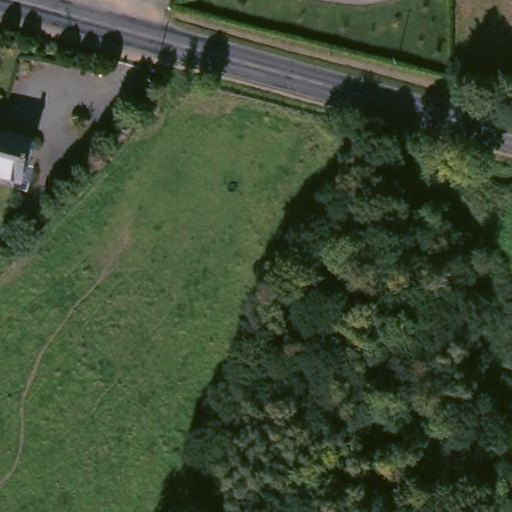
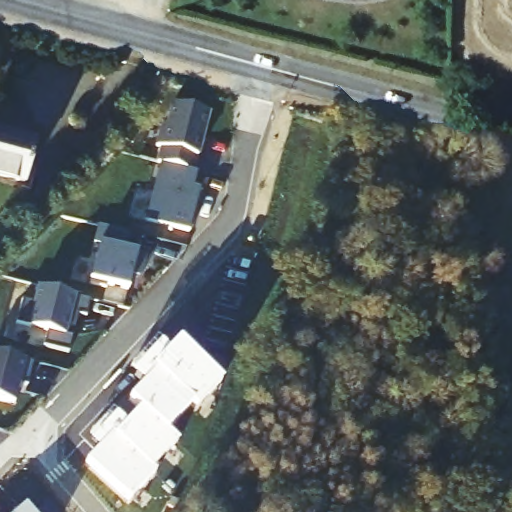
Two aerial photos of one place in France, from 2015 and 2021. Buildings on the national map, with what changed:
new [(162,127),(167,128),(172,106),(208,116),(196,159),(191,173),(157,164),(161,150),(157,149),(162,127)]
unchanged [(0,171),(0,123),(45,135),(32,179),(0,171)]
new [(200,189),(189,232),(145,221),(157,179),(200,189)]
new [(100,243),(94,242),(99,226),(131,234),(125,251),(137,254),(145,255),(140,278),(131,275),(127,290),(91,280),(100,243)]
new [(76,297),(90,301),(85,316),(76,315),(68,351),(45,346),(46,332),(27,326),(16,324),(22,300),(34,303),(37,286),(76,297)]
new [(109,421),(105,417),(110,411),(117,418),(125,425),(139,411),(129,401),(141,387),(132,378),(137,372),(131,366),(137,360),(142,365),(157,348),(159,350),(165,356),(176,345),(219,385),(193,411),(189,407),(164,434),(175,444),(149,471),(153,475),(127,501),(86,462),(99,448),(93,443),(96,440),(94,438),(109,421)]
new [(27,387),(19,384),(14,404),(0,401),(0,355),(34,363),(27,387)]
new [(35,512),(18,512),(28,503),(35,512)]

